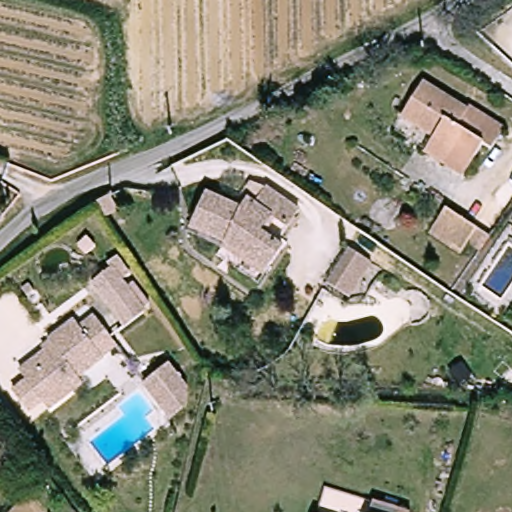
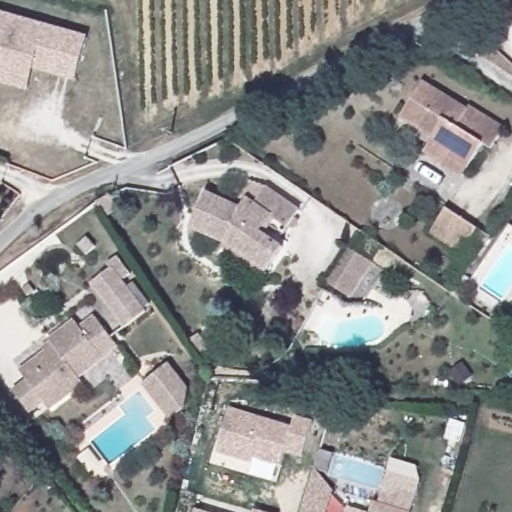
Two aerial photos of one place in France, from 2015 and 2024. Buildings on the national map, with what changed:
new [(34,70),(28,91),(0,84),(0,13),(0,12),(88,35),(76,80),(34,70)]
unchanged [(425,156),(430,149),(447,160),(452,151),(435,141),(404,121),(428,85),(458,104),(464,103),(508,132),(493,155),(486,150),(469,174),(464,182),(425,156)]
unchanged [(283,249),(266,270),(225,245),(191,226),(206,192),(237,207),(246,196),(254,201),(265,187),(300,211),(287,227),(275,243),(283,249)]
unchanged [(462,256),(436,234),(443,225),(452,212),(481,231),(472,244),(462,256)]
unchanged [(351,252),(373,266),(351,301),(329,287),(351,252)]
unchanged [(113,266),(148,310),(128,326),(93,282),(113,266)]
unchanged [(77,320),(82,327),(96,315),(120,345),(80,376),(85,381),(50,407),(23,370),(55,346),(51,341),(77,320)]
unchanged [(171,363),(190,388),(188,407),(175,417),(146,382),(171,363)]
new [(232,408),(293,428),(298,416),(315,422),(302,458),(286,453),(281,467),(253,458),(251,465),(218,453),(232,408)]
unchanged [(376,504),(414,512),(373,512),(376,504)]
new [(194,508),(207,512),(193,512),(194,508)]
new [(256,510),(262,512),(254,512),(256,510)]

